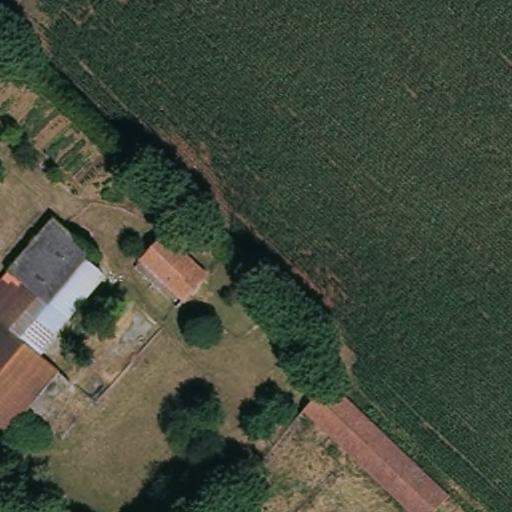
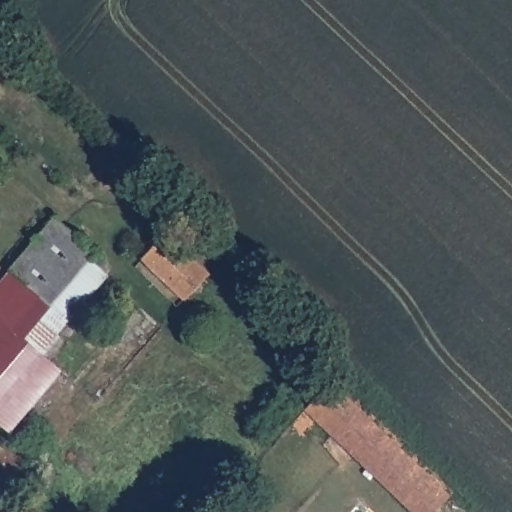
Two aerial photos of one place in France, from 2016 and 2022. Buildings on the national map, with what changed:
unchanged [(9,330),(36,298),(5,270),(49,217),(89,252),(82,261),(101,277),(36,354),(9,330)]
unchanged [(204,275),(179,300),(135,259),(159,232),(204,275)]
unchanged [(5,270),(36,298),(9,330),(36,354),(56,370),(3,432),(0,430),(0,274),(4,270),(5,270)]
unchanged [(304,410),(306,407),(328,381),(449,497),(435,512),(412,512),(304,410)]
unchanged [(10,510),(11,511),(10,512),(0,512),(0,503),(10,510)]

